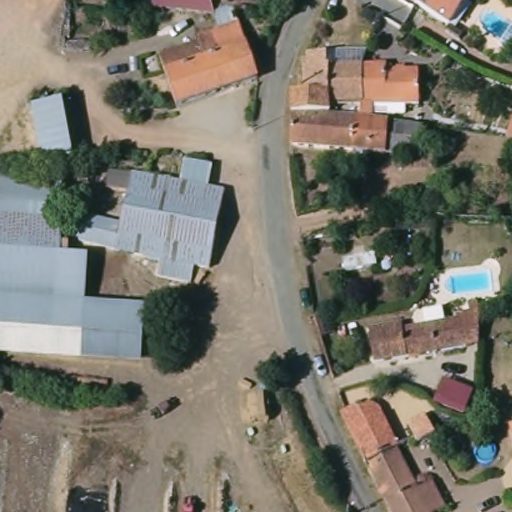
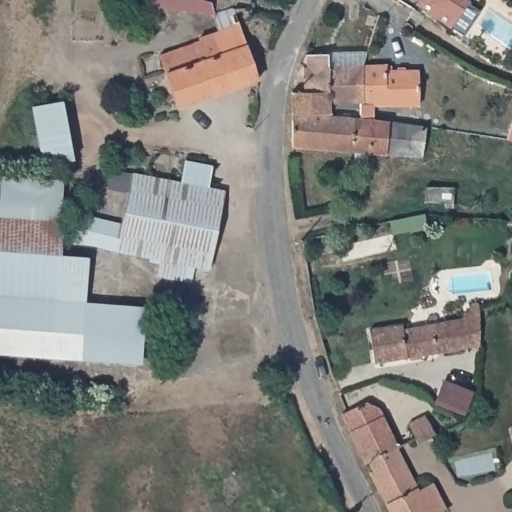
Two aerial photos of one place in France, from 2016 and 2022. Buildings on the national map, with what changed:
unchanged [(196,53),(195,48),(217,41),(212,24),(151,15),(148,0),(164,0),(205,10),(215,21),(229,16),(249,16),(251,30),(241,33),(252,74),(256,83),(257,86),(175,116),(158,66),(196,53)]
unchanged [(449,27),(412,1),(413,0),(469,0),(449,27)]
unchanged [(314,62),(314,49),(336,49),(335,63),(359,63),(360,98),(330,98),(329,107),(288,109),(287,89),(303,89),(309,62),(314,62)]
unchanged [(383,63),(383,68),(417,68),(416,105),(370,105),(370,118),(360,117),(360,98),(359,63),(383,63)]
unchanged [(507,88),(512,82),(512,90),(507,88)]
unchanged [(33,108),(64,100),(76,161),(44,168),(33,108)]
unchanged [(329,107),(328,112),(360,117),(353,152),(290,144),(288,109),(329,107)]
unchanged [(500,142),(512,107),(512,145),(500,142)]
unchanged [(370,118),(425,125),(420,161),(353,152),(360,117),(370,118)]
unchanged [(234,162),(227,189),(181,180),(187,151),(234,162)]
unchanged [(105,191),(109,175),(127,176),(225,197),(207,274),(195,271),(192,287),(185,286),(166,282),(155,279),(159,261),(115,252),(119,226),(125,194),(105,191)]
unchanged [(64,257),(0,256),(0,202),(64,202),(64,257)]
unchanged [(119,226),(115,252),(72,245),(76,219),(119,226)]
unchanged [(81,257),(80,304),(82,304),(137,306),(136,358),(0,354),(0,256),(64,257),(81,257)]
unchanged [(400,323),(401,328),(460,319),(459,312),(476,310),(473,346),(372,362),(368,329),(400,323)]
unchanged [(372,399),(400,459),(367,473),(340,412),(372,399)]
unchanged [(422,415),(431,434),(413,442),(405,422),(422,415)]
unchanged [(511,449),(506,427),(512,426),(512,452),(511,449)]
unchanged [(379,481),(375,473),(401,463),(420,499),(435,492),(444,512),(387,512),(382,503),(372,484),(379,481)]

